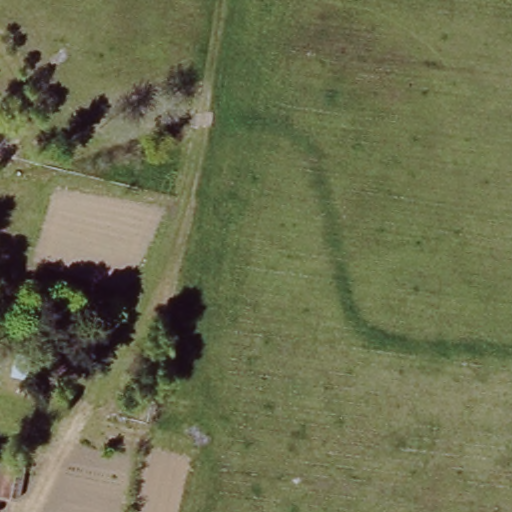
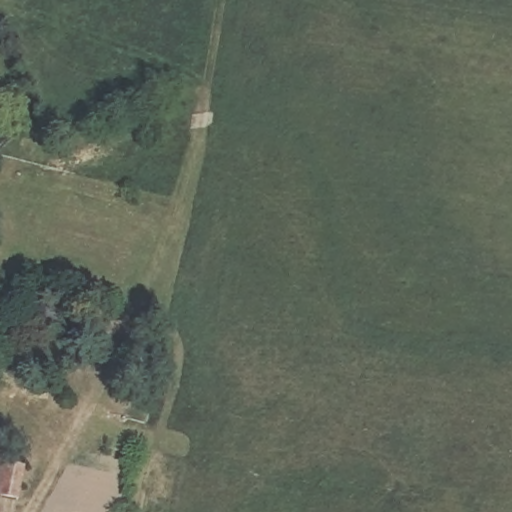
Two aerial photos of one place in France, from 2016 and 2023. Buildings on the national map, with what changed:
unchanged [(16,499),(0,494),(0,480),(6,458),(26,465),(16,499)]

